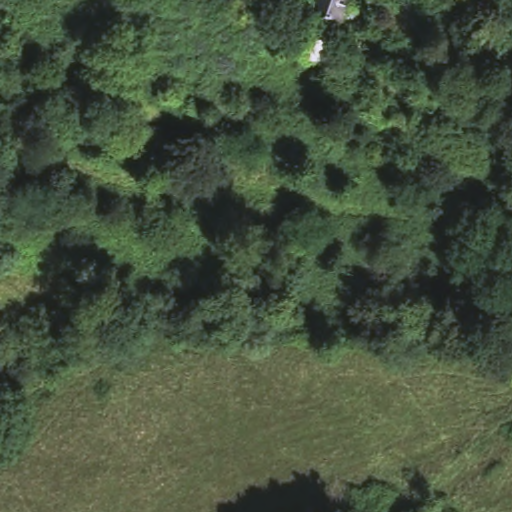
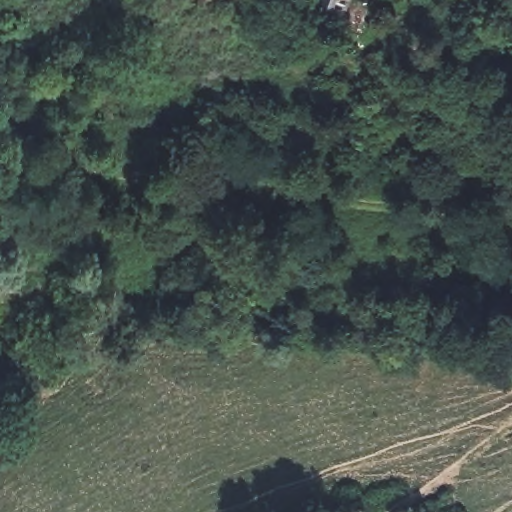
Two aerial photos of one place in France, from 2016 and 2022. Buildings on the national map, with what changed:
unchanged [(303,14),(308,0),(345,0),(337,24),(303,14)]

